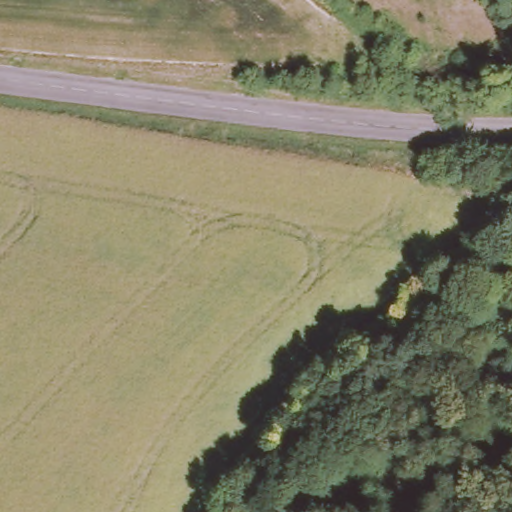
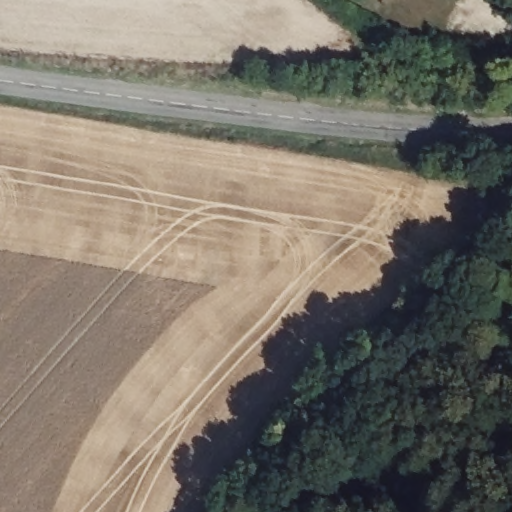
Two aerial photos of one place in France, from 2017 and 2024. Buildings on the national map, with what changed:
unchanged [(449,0),(450,0),(450,1),(449,0)]

